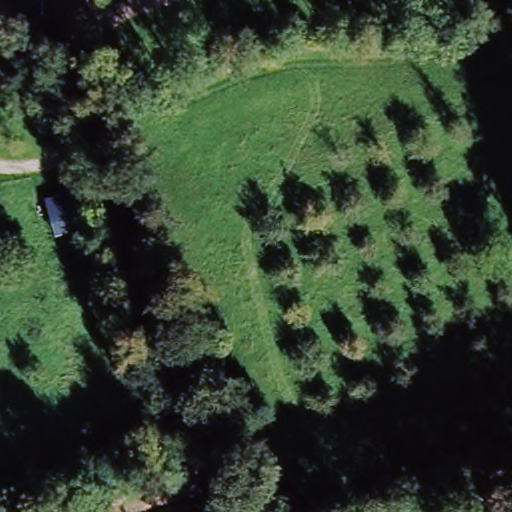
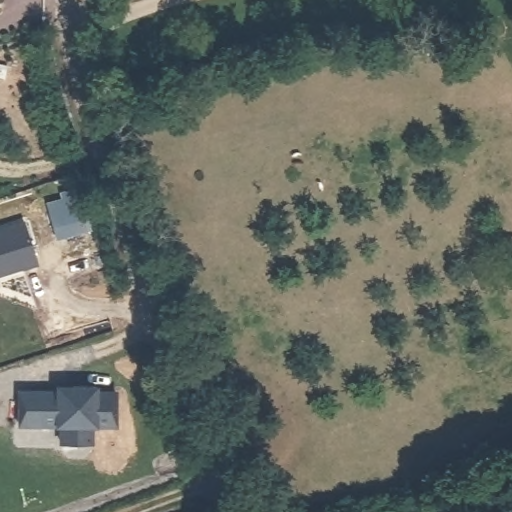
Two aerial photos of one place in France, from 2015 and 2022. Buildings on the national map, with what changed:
unchanged [(57,226),(52,205),(85,196),(91,218),(95,230),(60,240),(57,226)]
new [(25,222),(38,264),(22,269),(22,267),(0,274),(0,230),(25,222)]
new [(57,392),(57,387),(73,387),(96,387),(96,392),(116,392),(115,426),(92,426),(92,443),(60,443),(61,425),(20,425),(20,392),(57,392)]

